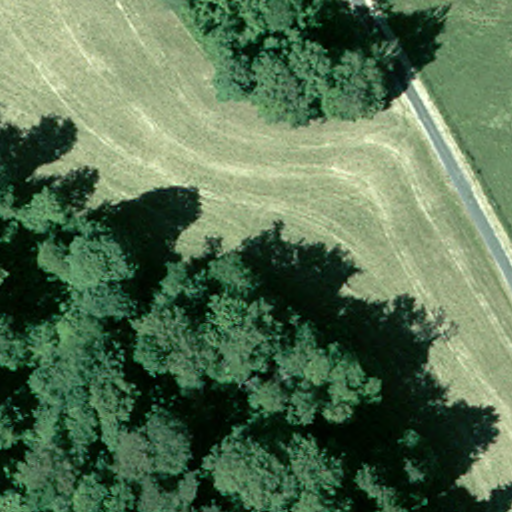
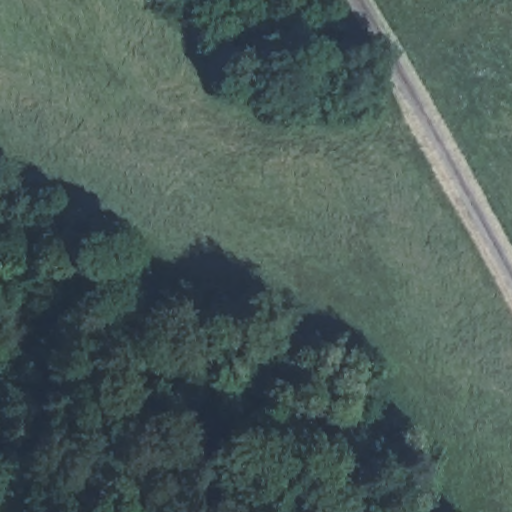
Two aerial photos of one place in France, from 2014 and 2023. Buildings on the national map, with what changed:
[]

